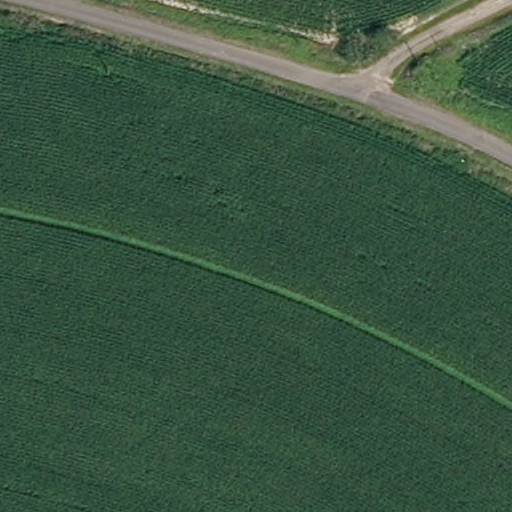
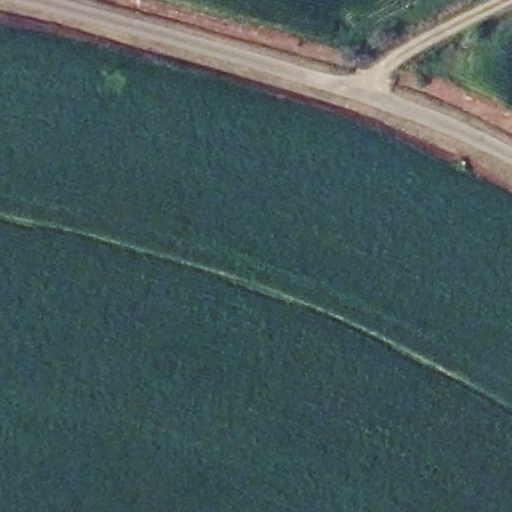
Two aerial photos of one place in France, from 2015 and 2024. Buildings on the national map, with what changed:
unchanged [(467,95),(475,98),(473,106),(464,103),(467,95)]

